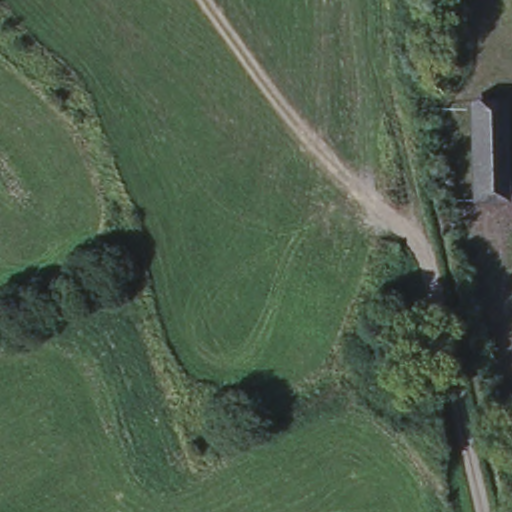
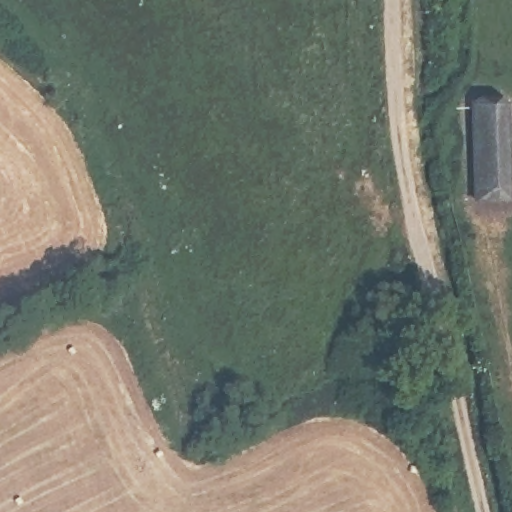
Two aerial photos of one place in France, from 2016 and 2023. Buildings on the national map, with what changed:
unchanged [(511,109),(508,195),(467,197),(472,108),(511,109)]

